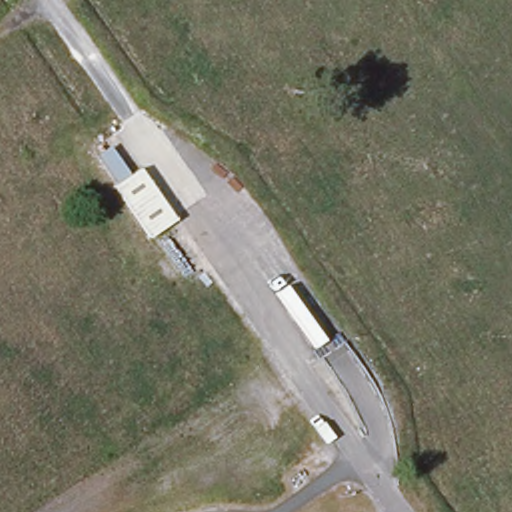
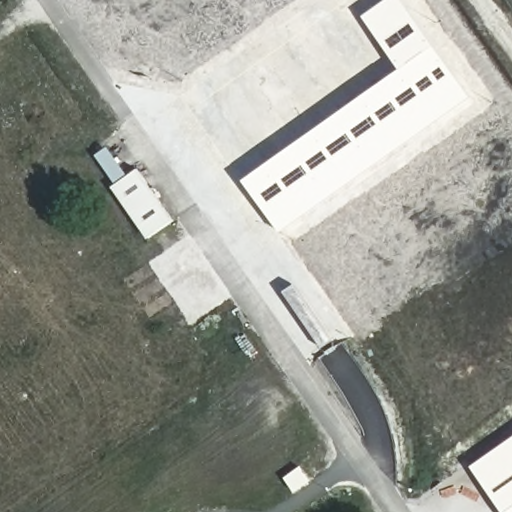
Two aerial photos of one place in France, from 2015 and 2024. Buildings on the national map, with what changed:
new [(364,17),(389,0),(403,0),(473,99),(283,234),(245,182),(401,70),(364,17)]
unchanged [(114,185),(95,156),(107,147),(127,175),(137,168),(174,222),(147,239),(111,188),(114,185)]
new [(512,434),(512,512),(509,512),(472,461),(512,434)]

